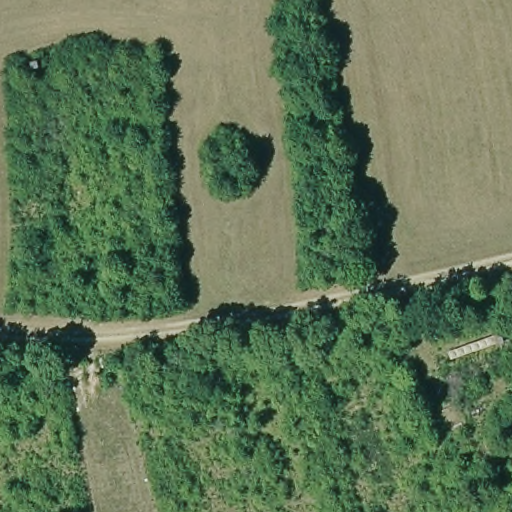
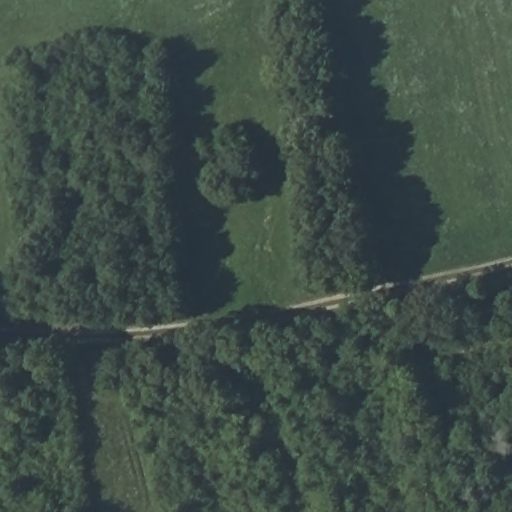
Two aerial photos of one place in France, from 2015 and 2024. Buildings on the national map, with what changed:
[]

